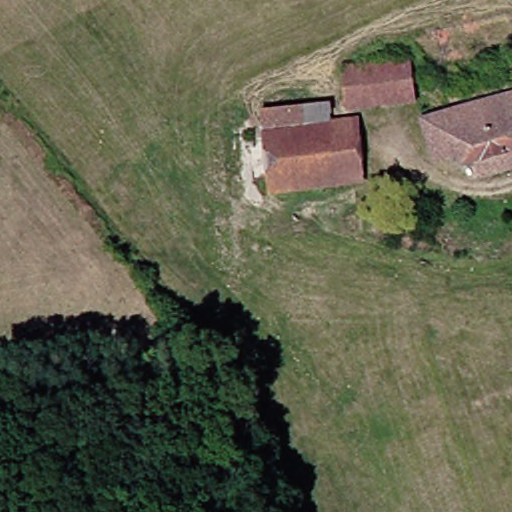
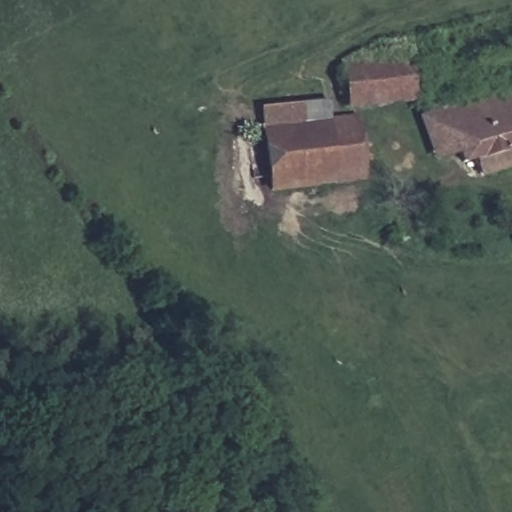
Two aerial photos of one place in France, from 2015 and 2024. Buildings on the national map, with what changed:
unchanged [(414,101),(348,109),(343,65),(408,56),(414,101)]
unchanged [(459,152),(434,159),(421,117),(510,91),(512,97),(512,144),(462,160),(459,152)]
unchanged [(339,183),(275,191),(266,111),(333,104),(335,122),(339,183)]

